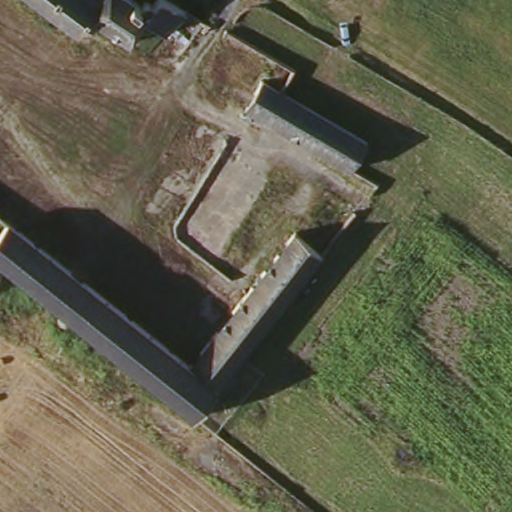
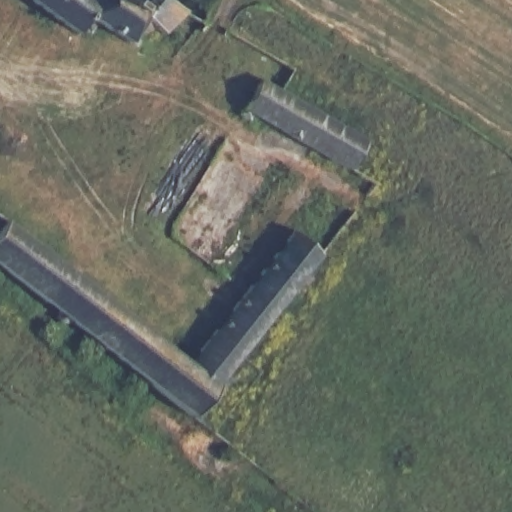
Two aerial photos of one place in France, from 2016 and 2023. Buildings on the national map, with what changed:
unchanged [(46,5),(39,0),(50,0),(46,5)]
unchanged [(50,0),(184,0),(173,19),(165,15),(148,32),(140,27),(133,37),(95,14),(84,30),(46,5),(50,0)]
unchanged [(237,102),(247,89),(203,62),(226,27),(296,70),(286,86),(285,95),(357,139),(340,167),(237,102)]
unchanged [(12,218),(0,234),(0,209),(12,218)]
unchanged [(116,353),(88,332),(0,267),(0,234),(12,218),(39,239),(191,351),(301,218),(333,241),(196,412),(116,353)]

